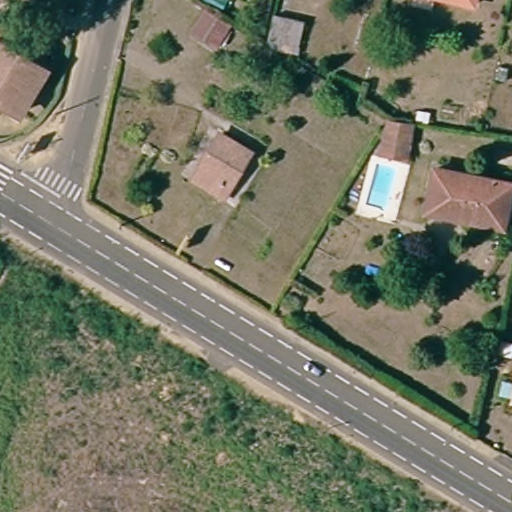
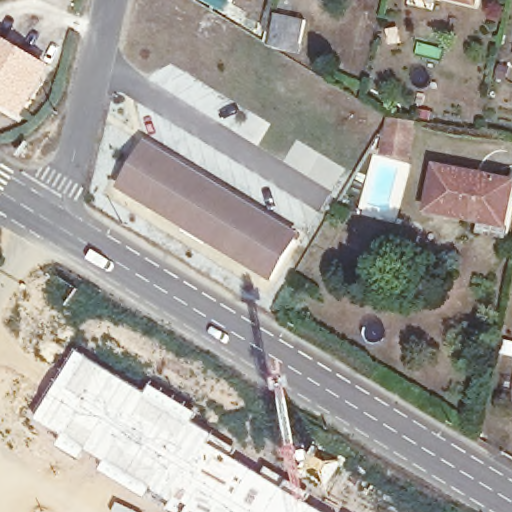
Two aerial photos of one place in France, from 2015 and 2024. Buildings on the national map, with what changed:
unchanged [(477,3),(465,0),(478,0),(477,3)]
demolished [(207,15),(233,30),(217,55),(191,39),(207,15)]
unchanged [(309,26),(303,50),(273,43),(279,18),(309,26)]
unchanged [(47,63),(21,107),(0,95),(0,34),(47,63)]
unchanged [(393,162),(377,159),(380,146),(372,142),(381,127),(407,130),(406,142),(403,163),(393,162)]
demolished [(221,134),(222,133),(253,153),(227,197),(218,190),(225,177),(202,164),(221,134)]
new [(145,138),(299,234),(270,281),(114,188),(145,138)]
unchanged [(512,202),(507,229),(431,213),(439,170),(512,185),(512,202)]
new [(153,491),(147,500),(100,472),(107,462),(88,451),(80,462),(57,447),(63,436),(35,420),(77,352),(146,396),(152,385),(197,414),(192,422),(213,436),(237,450),(231,458),(262,476),(267,468),(310,495),(305,503),(320,512),(169,512),(174,503),(153,491)]

